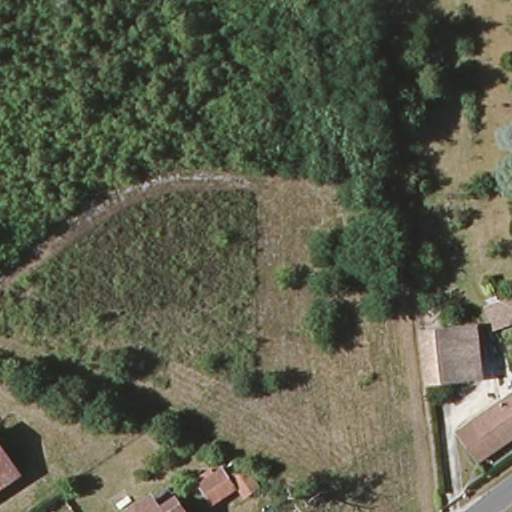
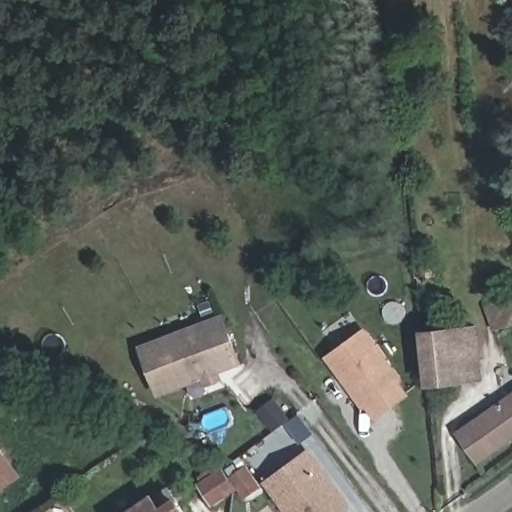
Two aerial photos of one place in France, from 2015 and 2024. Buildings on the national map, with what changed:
unchanged [(483,306),(512,296),(512,324),(493,331),(483,306)]
new [(221,372),(224,380),(205,385),(203,379),(157,395),(138,345),(225,313),(244,365),(221,372)]
new [(401,381),(410,395),(375,420),(366,407),(364,409),(325,356),(366,326),(405,380),(401,381)]
unchanged [(450,331),(473,328),(480,375),(457,379),(450,331)]
unchanged [(425,384),(418,337),(450,331),(457,379),(425,384)]
unchanged [(455,433),(500,400),(495,392),(512,382),(512,440),(476,465),(455,433)]
unchanged [(4,451),(0,455),(0,446),(4,451)]
new [(286,512),(263,481),(310,447),(353,506),(345,512),(286,512)]
unchanged [(20,471),(0,486),(0,455),(4,451),(20,471)]
unchanged [(194,512),(164,512),(221,469),(233,484),(194,512)]
unchanged [(158,512),(125,512),(145,498),(158,512)]

